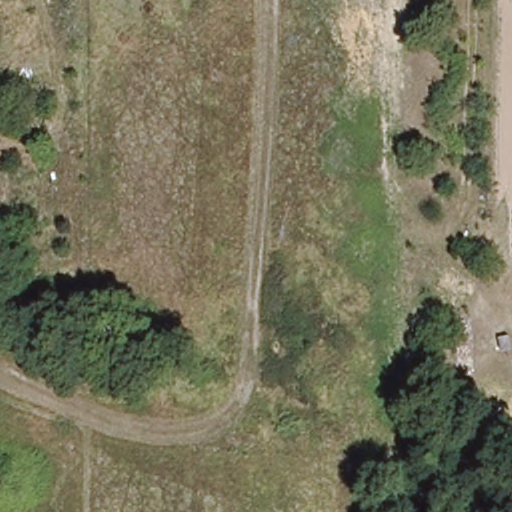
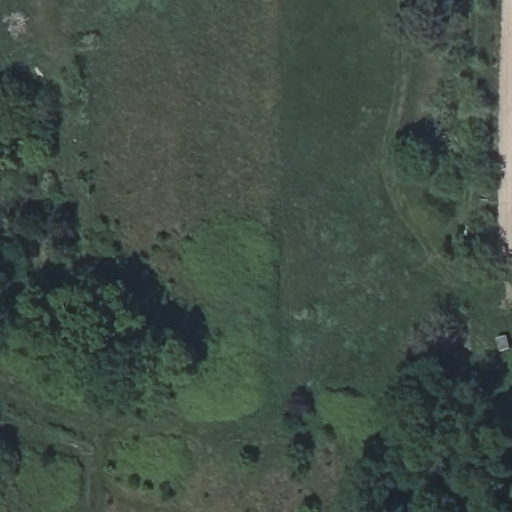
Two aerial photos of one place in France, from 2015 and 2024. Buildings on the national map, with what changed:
unchanged [(491,318),(492,352),(471,351),(473,379),(446,377),(446,349),(464,348),(460,317),(491,318)]

